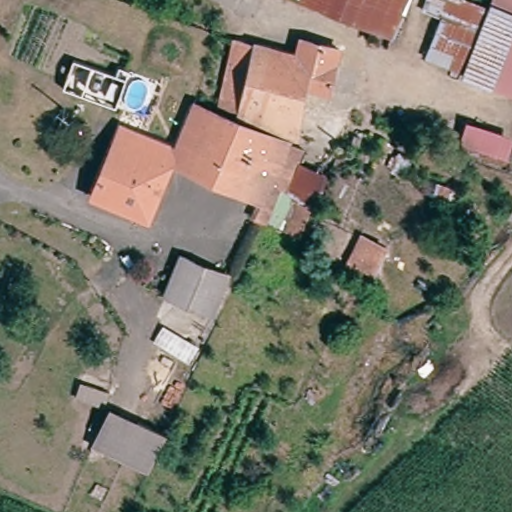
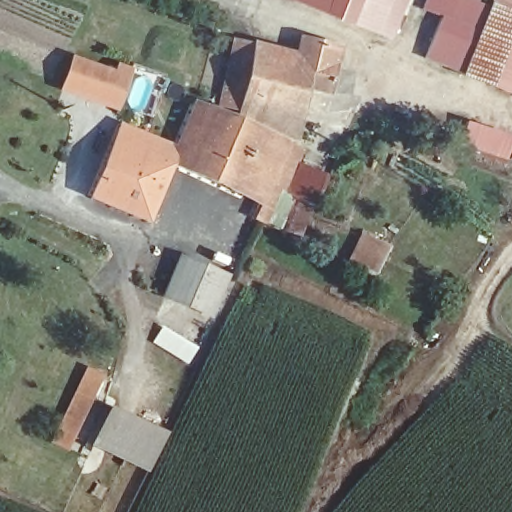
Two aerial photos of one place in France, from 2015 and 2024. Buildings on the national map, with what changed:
unchanged [(391,31),(302,0),(403,0),(391,31)]
unchanged [(468,73),(432,59),(447,20),(427,12),(432,0),(475,0),(494,7),(468,73)]
unchanged [(494,7),(497,0),(512,0),(512,90),(468,73),(494,7)]
unchanged [(294,140),(245,129),(245,126),(246,120),(227,112),(244,46),(304,60),(308,45),(342,54),(332,94),(311,89),(294,140)]
new [(115,71),(117,61),(135,67),(119,112),(59,92),(72,56),(115,71)]
unchanged [(258,225),(258,202),(179,167),(202,108),(245,126),(245,129),(294,140),(291,147),(303,152),(297,169),(327,182),(315,214),(304,209),(293,236),(268,223),(266,229),(258,225)]
unchanged [(468,126),(510,142),(502,163),(460,147),(468,126)]
unchanged [(175,155),(169,169),(176,172),(154,224),(99,200),(107,180),(114,166),(122,146),(127,132),(129,130),(158,142),(176,151),(175,155)]
unchanged [(376,276),(350,264),(362,240),(387,252),(376,276)]
unchanged [(213,315),(166,295),(182,255),(229,276),(213,315)]
unchanged [(194,352),(187,364),(148,341),(156,328),(194,352)]
demolished [(0,333),(2,334),(0,337),(0,333)]
new [(51,443),(87,367),(105,376),(69,453),(51,443)]
unchanged [(154,461),(147,473),(95,448),(110,415),(165,438),(154,461)]

